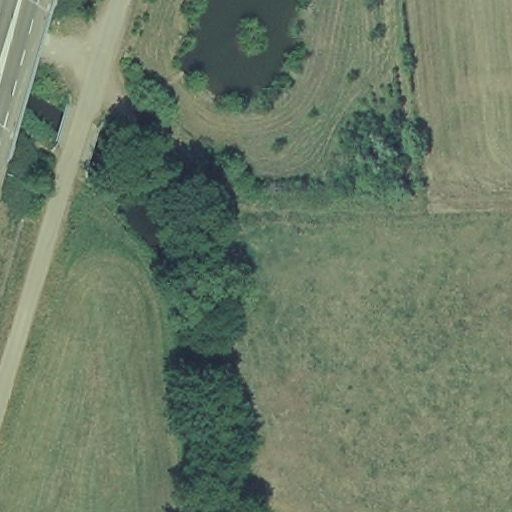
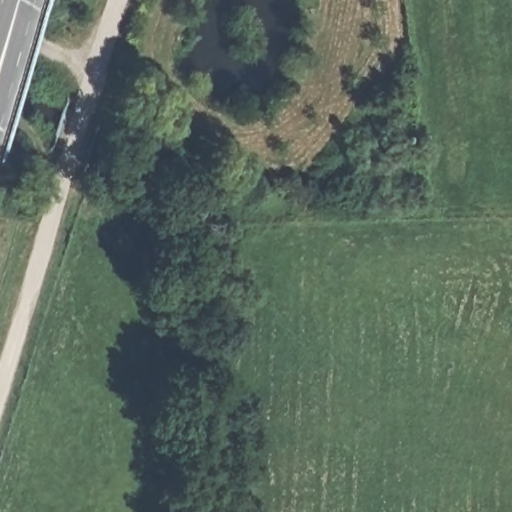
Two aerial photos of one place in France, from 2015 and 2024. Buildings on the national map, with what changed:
unchanged [(221,223),(230,258),(204,264),(195,230),(221,223)]

